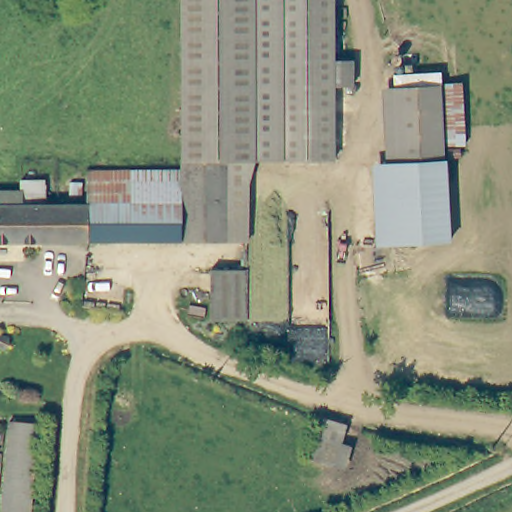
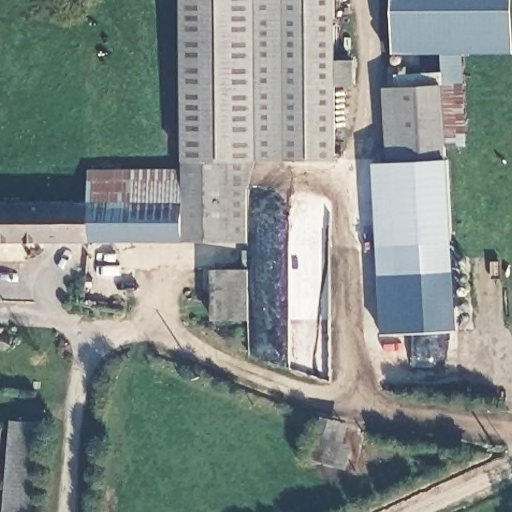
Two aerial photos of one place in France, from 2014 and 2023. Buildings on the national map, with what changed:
unchanged [(182,0),(332,0),(332,162),(249,162),(246,187),(247,240),(227,241),(227,84),(182,84),(182,0)]
new [(466,145),(444,144),(440,71),(440,53),(393,53),(393,0),(512,0),(512,53),(462,53),(466,145)]
unchanged [(386,164),(383,89),(392,89),(389,73),(440,71),(445,157),(386,164)]
unchanged [(87,170),(182,169),(182,84),(227,84),(227,241),(109,241),(109,223),(88,223),(88,204),(87,170)]
unchanged [(452,243),(375,246),(374,165),(386,164),(445,157),(452,243)]
unchanged [(20,190),(21,180),(44,180),(45,203),(88,204),(88,223),(109,223),(109,241),(0,241),(0,191),(20,190)]
new [(452,243),(451,323),(380,326),(375,246),(452,243)]
unchanged [(246,322),(209,322),(207,272),(245,271),(246,322)]
unchanged [(10,336),(10,338),(11,341),(10,345),(7,348),(4,349),(0,347),(0,334),(10,336)]
unchanged [(344,420),(338,464),(313,460),(319,416),(344,420)]
unchanged [(38,423),(31,512),(3,512),(10,421),(38,423)]

